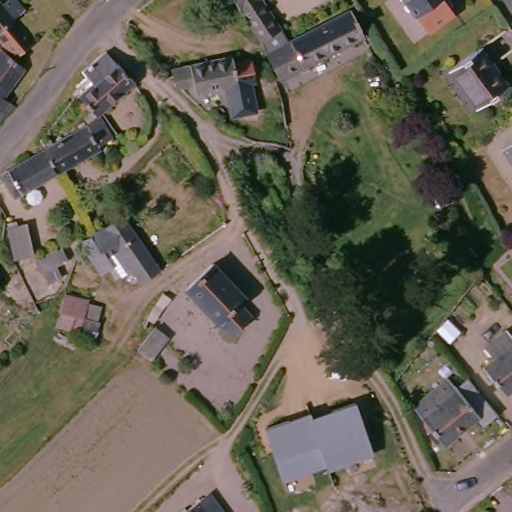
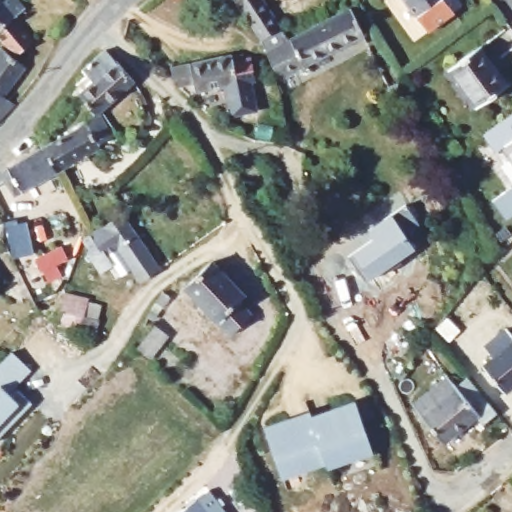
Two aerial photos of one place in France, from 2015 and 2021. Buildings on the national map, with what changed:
unchanged [(277,35),(264,44),(256,50),(222,0),(266,0),(258,5),(277,35)]
unchanged [(448,16),(421,35),(398,0),(439,0),(438,1),(448,16)]
unchanged [(8,66),(21,77),(3,105),(14,115),(0,129),(0,10),(6,5),(19,20),(9,27),(28,50),(8,66)]
unchanged [(289,45),(346,16),(359,45),(274,86),(256,50),(264,44),(277,35),(283,47),(289,45)]
unchanged [(476,118),(448,79),(479,57),(488,51),(501,70),(492,76),(506,96),(476,118)]
unchanged [(134,89),(101,119),(100,121),(99,122),(89,129),(84,122),(92,116),(78,100),(81,97),(76,91),(86,82),(81,77),(104,56),(115,69),(116,68),(134,89)]
unchanged [(237,91),(231,91),(234,108),(206,113),(204,98),(196,100),(194,91),(178,95),(172,90),(171,81),(170,74),(233,62),(237,91)]
unchanged [(89,129),(99,122),(100,121),(113,145),(99,151),(101,156),(57,179),(44,154),(89,129)]
unchanged [(506,154),(512,150),(512,163),(506,154)]
unchanged [(57,179),(13,202),(1,180),(10,173),(44,154),(57,179)]
unchanged [(282,212),(269,220),(256,196),(269,189),(282,212)]
new [(399,260),(401,264),(386,275),(383,271),(366,283),(348,258),(374,240),(369,232),(405,206),(419,225),(404,235),(409,242),(414,249),(399,260)]
unchanged [(159,280),(141,293),(132,280),(121,287),(113,275),(100,285),(86,265),(89,263),(82,250),(90,245),(120,226),(159,280)]
unchanged [(33,260),(13,264),(6,230),(16,227),(16,231),(26,230),(33,260)]
unchanged [(61,286),(54,302),(44,278),(41,280),(35,265),(61,254),(66,267),(56,272),(61,286)]
unchanged [(238,306),(231,313),(244,327),(224,346),(181,299),(208,274),(238,306)]
unchanged [(162,295),(169,300),(153,323),(146,320),(148,314),(162,295)]
unchanged [(100,312),(96,332),(91,331),(92,326),(89,326),(87,335),(79,333),(77,340),(65,337),(58,331),(61,318),(59,317),(63,300),(86,305),(85,309),(100,312)]
unchanged [(38,311),(34,314),(33,315),(26,304),(33,301),(35,305),(38,311)]
unchanged [(154,327),(167,337),(160,346),(150,358),(137,348),(149,333),(154,327)]
unchanged [(512,340),(512,389),(504,395),(483,368),(493,360),(484,348),(505,331),(512,340)]
unchanged [(429,355),(437,366),(414,385),(405,374),(429,355)]
unchanged [(478,421),(443,450),(411,411),(446,383),(478,421)]
new [(13,398),(19,392),(33,405),(0,439),(0,388),(1,386),(13,398)]
unchanged [(329,470),(326,462),(283,478),(266,427),(309,411),(312,416),(354,401),(375,452),(329,470)]
unchanged [(212,512),(185,512),(203,499),(209,508),(212,512)]

